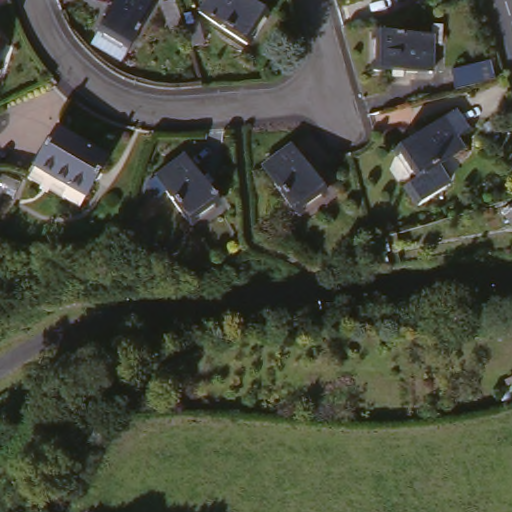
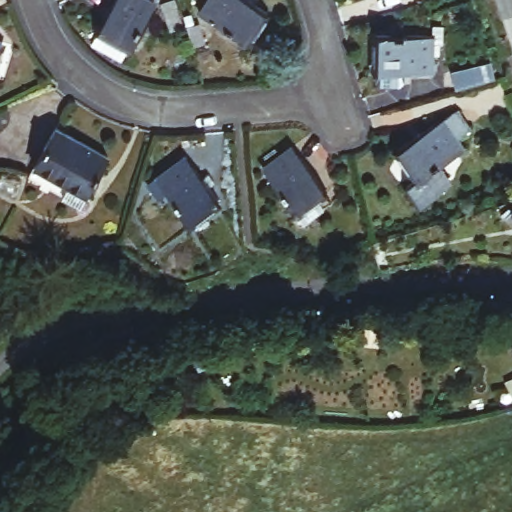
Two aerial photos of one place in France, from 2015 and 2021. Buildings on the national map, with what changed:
unchanged [(122,57),(92,40),(114,0),(136,0),(149,7),(122,57)]
unchanged [(243,47),(197,15),(207,0),(238,0),(262,17),(243,47)]
unchanged [(428,42),(427,77),(373,77),(375,40),(428,42)]
unchanged [(451,115),(464,135),(448,146),(454,155),(432,171),(441,185),(436,188),(440,192),(418,208),(406,189),(410,186),(393,157),(451,115)]
unchanged [(82,199),(32,167),(55,130),(103,160),(82,199)]
unchanged [(506,154),(512,166),(512,176),(502,181),(488,154),(502,146),(506,154)]
unchanged [(291,214),(263,167),(292,149),(320,194),(291,214)]
unchanged [(174,225),(160,170),(194,161),(207,215),(174,225)]
unchanged [(506,222),(500,214),(512,205),(512,218),(506,222)]
unchanged [(39,366),(61,356),(82,347),(89,373),(79,378),(77,379),(70,382),(51,391),(39,366)]

